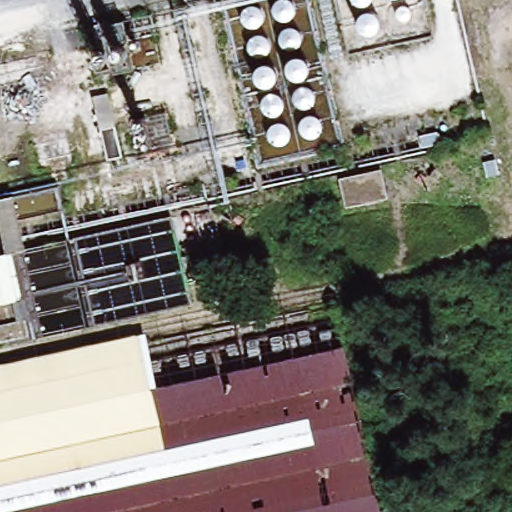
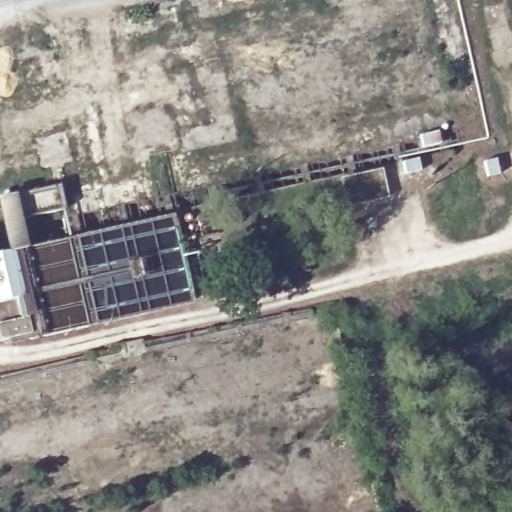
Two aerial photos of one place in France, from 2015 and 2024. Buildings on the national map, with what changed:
unchanged [(381,170),(387,199),(346,208),(341,178),(381,170)]
unchanged [(24,249),(170,216),(190,305),(41,339),(23,343),(21,335),(0,338),(0,302),(11,299),(9,287),(0,289),(0,258),(5,257),(0,234),(0,197),(14,194),(24,249)]
demolished [(383,512),(0,512),(0,363),(333,290),(383,512)]

